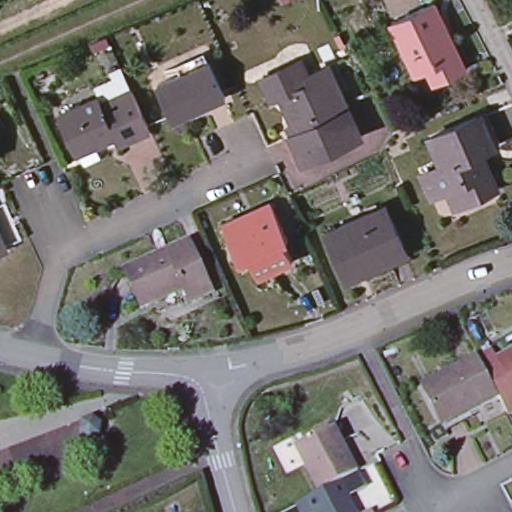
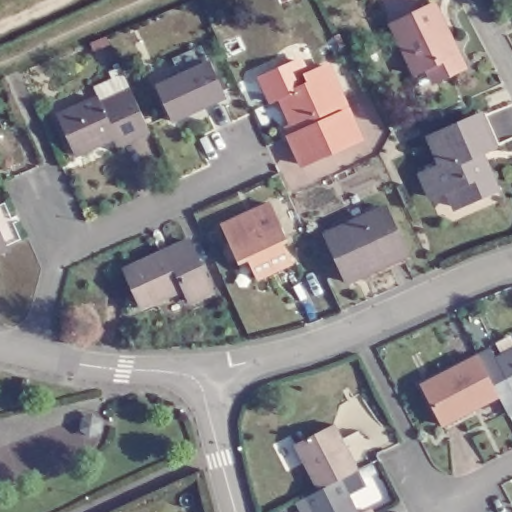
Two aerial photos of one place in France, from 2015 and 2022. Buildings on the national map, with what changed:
unchanged [(434,7),(466,71),(437,85),(429,70),(416,77),(391,27),(434,7)]
unchanged [(206,60),(224,97),(172,121),(154,84),(206,60)]
unchanged [(306,82),(302,74),(323,65),(340,102),(328,107),(331,115),(344,109),(356,136),(298,163),(286,136),(295,132),(291,124),(289,125),(276,96),(306,82)]
unchanged [(95,97),(99,104),(116,96),(135,138),(118,146),(113,137),(75,154),(57,114),(95,97)]
unchanged [(485,110),(499,141),(476,152),(480,161),(484,160),(496,184),(454,203),(447,187),(432,194),(422,172),(444,162),(431,135),(485,110)]
unchanged [(271,203),(288,239),(283,241),(291,261),(256,277),(248,257),(238,262),(221,225),(271,203)]
unchanged [(384,206),(407,253),(347,280),(324,233),(384,206)]
unchanged [(189,240),(213,292),(191,302),(186,288),(143,307),(125,269),(189,240)]
unchanged [(0,255),(0,241),(5,253),(0,255)]
unchanged [(499,352),(512,346),(512,406),(509,408),(499,389),(443,417),(424,379),(480,350),(494,380),(509,373),(499,352)]
unchanged [(332,424),(354,470),(315,490),(293,443),(332,424)]
unchanged [(349,495),(358,512),(317,512),(349,495)]

